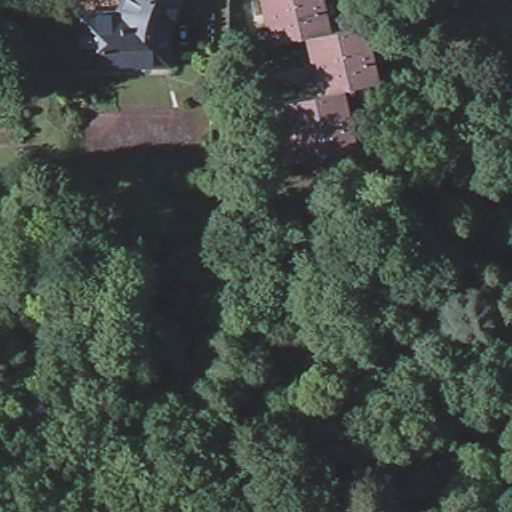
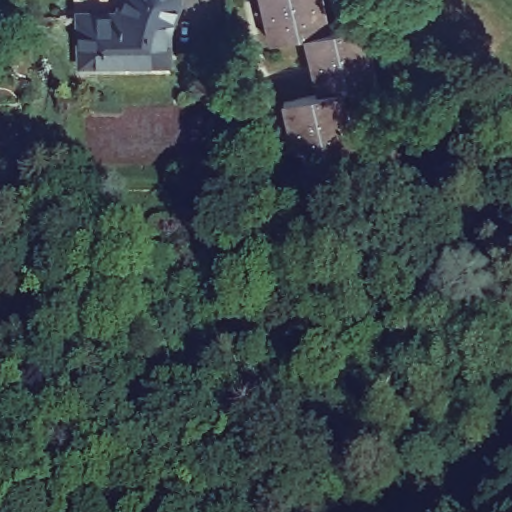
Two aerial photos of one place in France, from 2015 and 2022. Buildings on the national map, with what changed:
unchanged [(136,63),(76,65),(75,16),(75,15),(115,14),(115,12),(121,0),(172,0),(171,5),(168,12),(166,17),(166,52),(166,62),(136,63)]
unchanged [(359,22),(372,80),(336,89),(350,146),(292,159),(280,101),(315,94),(301,35),(266,44),(257,0),(317,0),(324,30),(359,22)]

